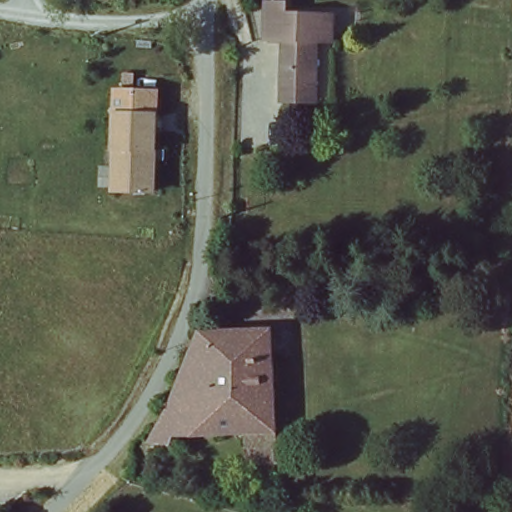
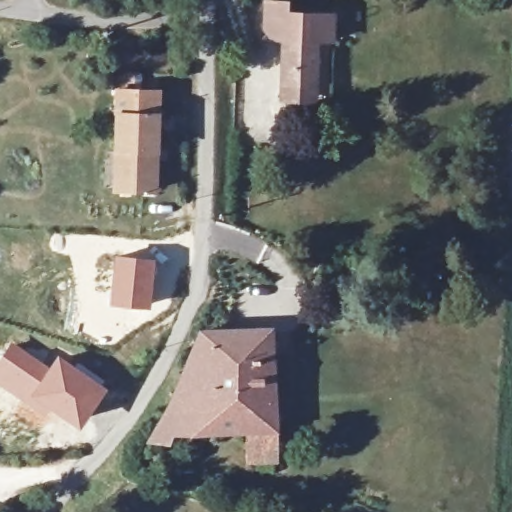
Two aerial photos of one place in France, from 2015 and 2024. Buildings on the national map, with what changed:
unchanged [(261,44),(262,0),(294,0),(294,11),(338,11),(333,103),(280,104),(278,44),(261,44)]
unchanged [(158,111),(156,191),(110,190),(110,111),(158,111)]
new [(114,254),(155,257),(150,307),(108,304),(114,254)]
unchanged [(163,422),(196,334),(229,336),(228,362),(275,365),(272,463),(242,460),(243,427),(234,426),(214,425),(163,422)]
unchanged [(275,339),(275,365),(228,362),(229,336),(275,339)]
new [(12,341),(48,365),(57,352),(108,389),(79,429),(52,411),(38,432),(11,413),(19,401),(0,388),(0,357),(12,341)]

